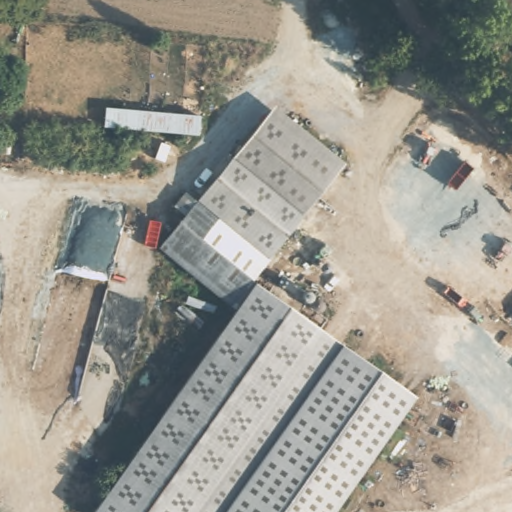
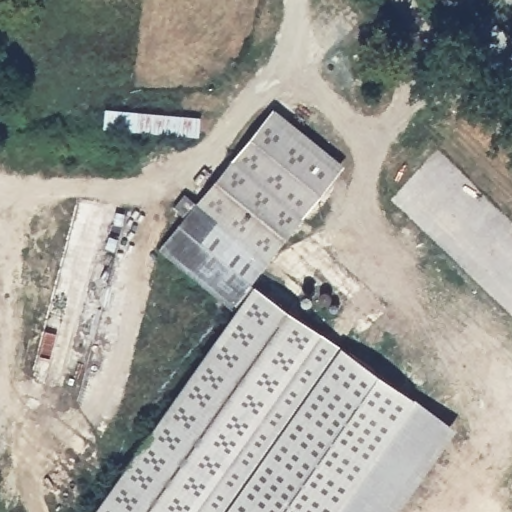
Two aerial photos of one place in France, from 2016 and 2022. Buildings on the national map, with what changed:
unchanged [(196,131),(102,127),(102,109),(196,114),(196,131)]
unchanged [(229,153),(262,110),(334,166),(301,209),(229,153)]
unchanged [(266,255),(194,198),(229,153),(301,209),(266,255)]
unchanged [(249,277),(229,301),(157,244),(194,198),(266,255),(249,277)]
unchanged [(340,344),(228,512),(98,512),(97,512),(236,305),(229,301),(249,277),(340,344)]
unchanged [(416,398),(335,512),(228,512),(340,344),(416,398)]
new [(416,398),(457,427),(396,512),(335,512),(416,398)]

